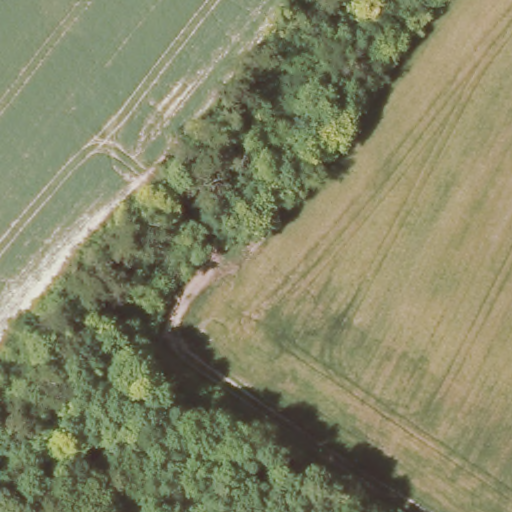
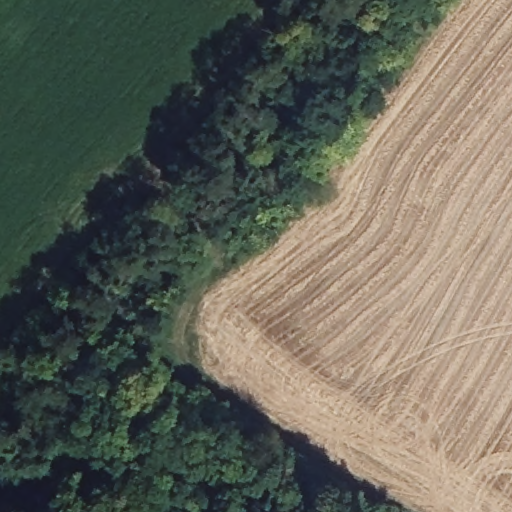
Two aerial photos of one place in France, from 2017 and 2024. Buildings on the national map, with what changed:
unchanged [(108,375),(90,394),(73,384),(95,366),(108,375)]
unchanged [(219,433),(173,432),(175,412),(216,409),(219,433)]

